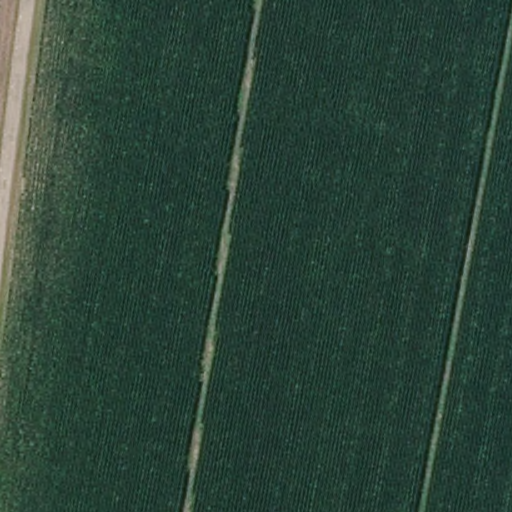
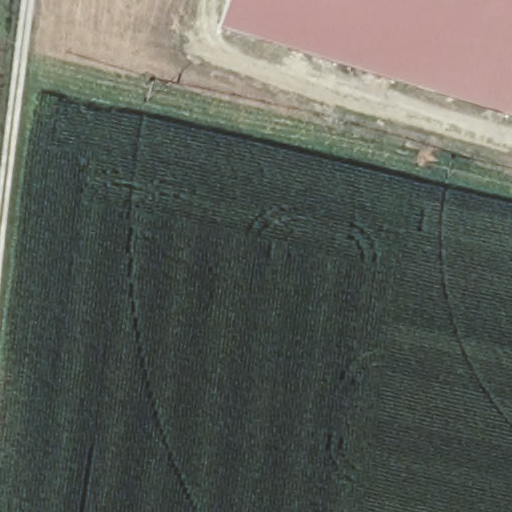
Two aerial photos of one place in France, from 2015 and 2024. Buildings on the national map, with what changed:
new [(228,0),(512,0),(512,113),(221,25),(228,0)]

